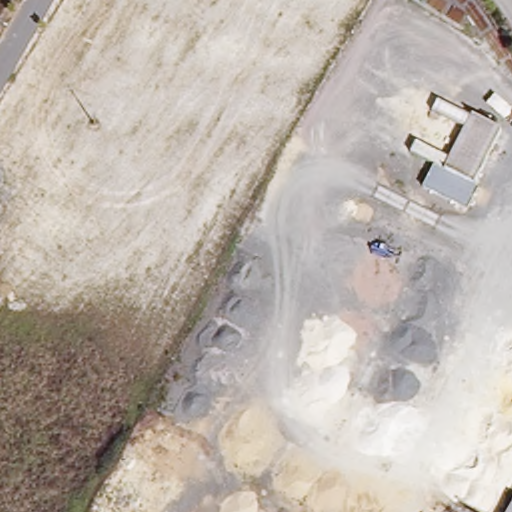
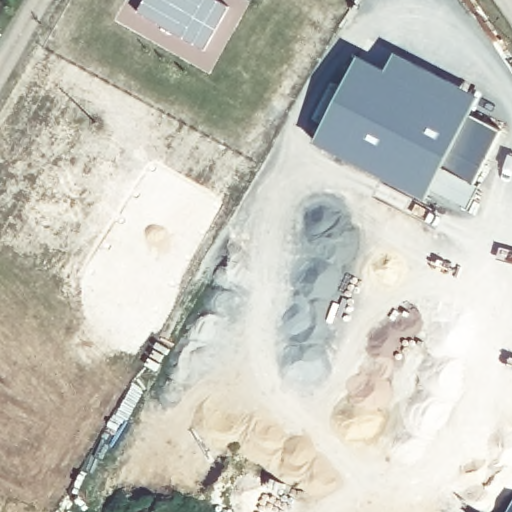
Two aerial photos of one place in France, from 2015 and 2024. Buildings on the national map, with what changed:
demolished [(89,35),(62,22),(74,0),(109,0),(89,35)]
new [(231,9),(204,51),(135,11),(140,0),(216,0),(231,9)]
new [(430,191),(426,200),(309,143),(353,55),(382,69),(392,55),(477,96),(467,116),(502,135),(474,186),(466,205),(430,191)]
demolished [(502,135),(474,186),(444,170),(471,119),(502,135)]
unchanged [(506,512),(512,502),(512,512),(506,512)]

